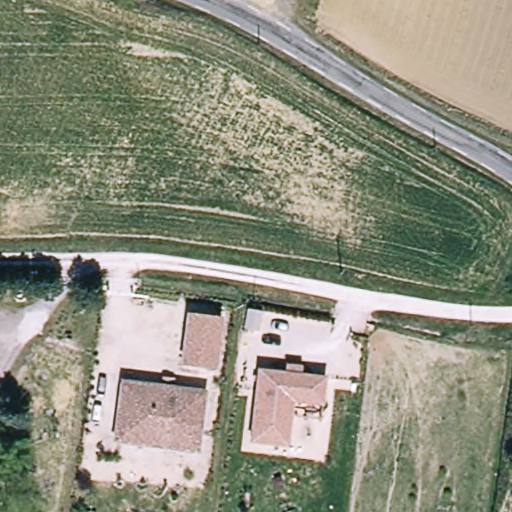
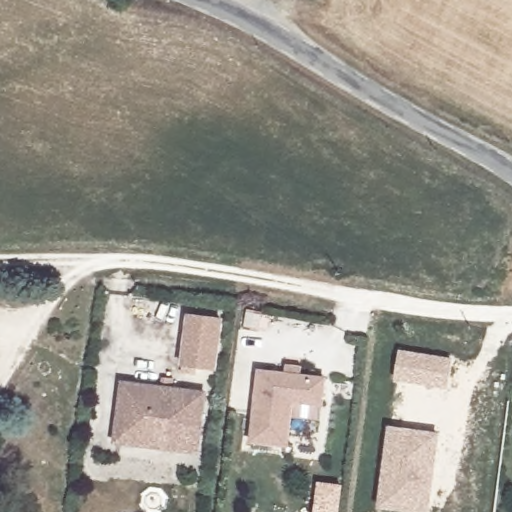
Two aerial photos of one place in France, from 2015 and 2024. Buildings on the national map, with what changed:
unchanged [(205,368),(203,376),(188,373),(198,317),(230,322),(221,371),(205,368)]
new [(453,359),(448,389),(395,382),(399,351),(453,359)]
unchanged [(293,414),(288,443),(252,439),(264,367),(328,378),(324,404),(322,419),(293,414)]
unchanged [(146,444),(116,439),(128,379),(170,387),(173,377),(184,381),(182,389),(210,395),(201,439),(199,454),(146,444)]
new [(388,427),(440,434),(428,512),(405,512),(378,509),(388,427)]

